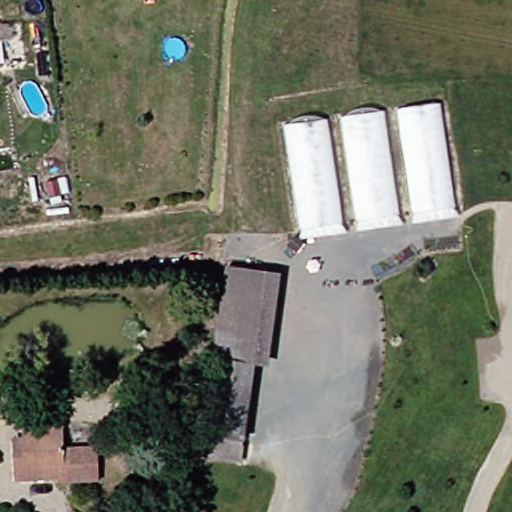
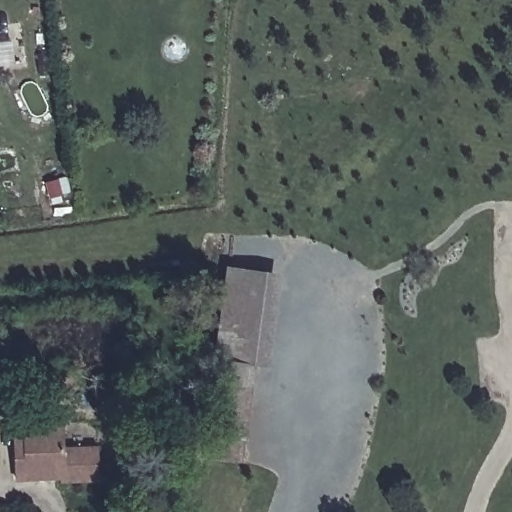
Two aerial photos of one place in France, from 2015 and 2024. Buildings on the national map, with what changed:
demolished [(396,105),(443,99),(458,214),(415,219),(396,105)]
demolished [(385,108),(404,219),(359,226),(343,114),(385,108)]
demolished [(290,226),(276,124),(316,116),(331,222),(290,226)]
unchanged [(227,275),(281,283),(270,371),(253,369),(216,365),(227,275)]
unchanged [(216,365),(253,369),(244,442),(207,438),(216,365)]
unchanged [(53,417),(52,437),(90,437),(91,472),(2,476),(2,445),(16,445),(16,417),(53,417)]

